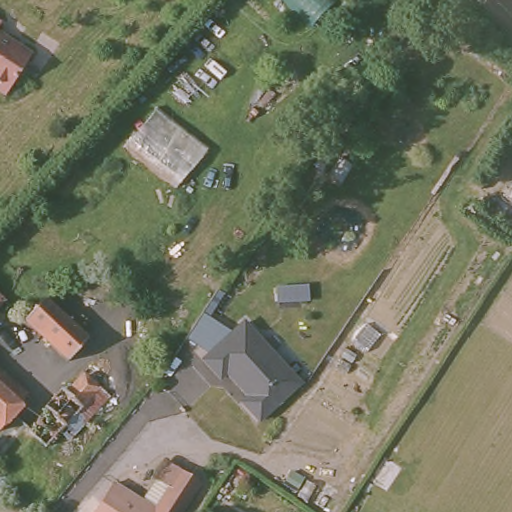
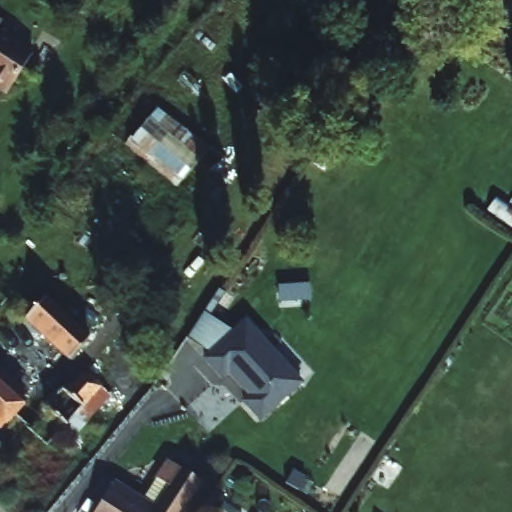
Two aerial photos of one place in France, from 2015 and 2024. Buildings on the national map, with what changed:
unchanged [(0,84),(0,16),(11,23),(6,31),(43,54),(17,95),(0,84)]
unchanged [(512,206),(512,229),(485,210),(496,196),(512,206)]
unchanged [(12,295),(0,307),(0,284),(12,295)]
unchanged [(74,355),(30,315),(49,294),(93,334),(74,355)]
unchanged [(3,313),(0,316),(0,310),(3,313)]
unchanged [(273,354),(271,357),(297,384),(259,419),(242,401),(247,395),(225,372),(220,377),(202,359),(242,321),(273,354)]
unchanged [(29,398),(5,425),(0,421),(0,366),(29,393),(29,398)]
unchanged [(65,392),(83,373),(109,396),(91,416),(65,392)]
unchanged [(113,478),(142,497),(167,457),(200,478),(178,512),(91,512),(108,486),(113,478)]

